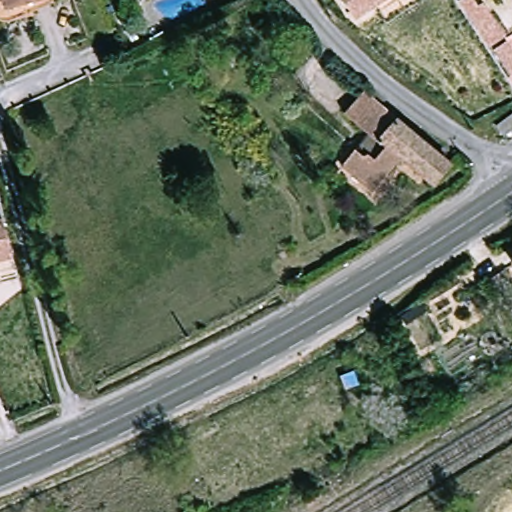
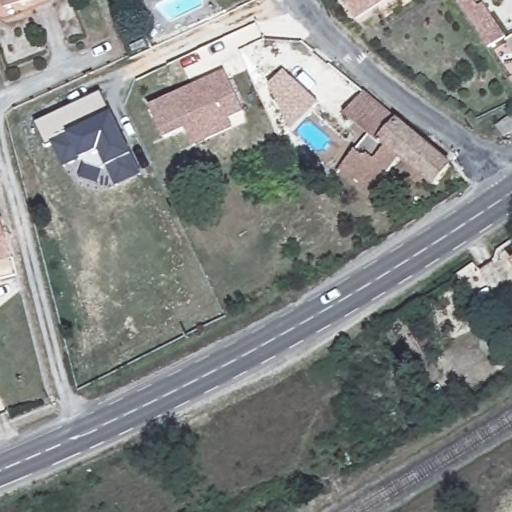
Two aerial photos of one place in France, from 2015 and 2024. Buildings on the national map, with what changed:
unchanged [(6,10),(3,0),(48,0),(6,10)]
unchanged [(354,23),(339,0),(390,0),(354,23)]
new [(193,145),(184,127),(162,135),(147,103),(224,71),(243,111),(227,118),(232,127),(193,145)]
new [(102,92),(113,114),(114,113),(143,175),(117,187),(109,167),(103,171),(86,166),(83,160),(65,170),(54,145),(47,148),(37,124),(102,92)]
unchanged [(348,115),(368,94),(455,167),(438,187),(405,160),(376,194),(345,169),(373,136),(348,115)]
unchanged [(504,137),(496,127),(512,115),(512,131),(504,137)]
unchanged [(11,259),(0,262),(0,221),(1,220),(11,259)]
unchanged [(344,476),(344,487),(326,489),(326,487),(326,475),(343,474),(344,476)]

